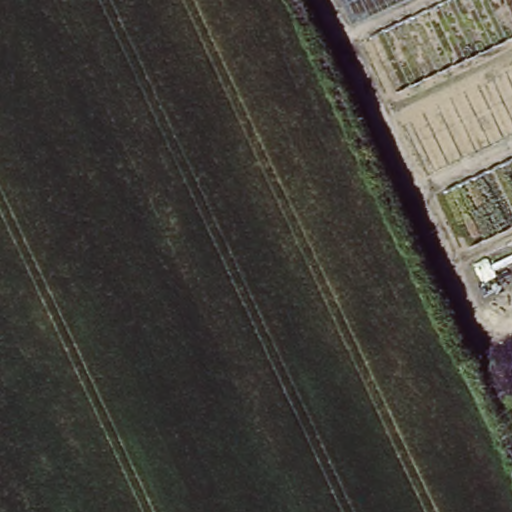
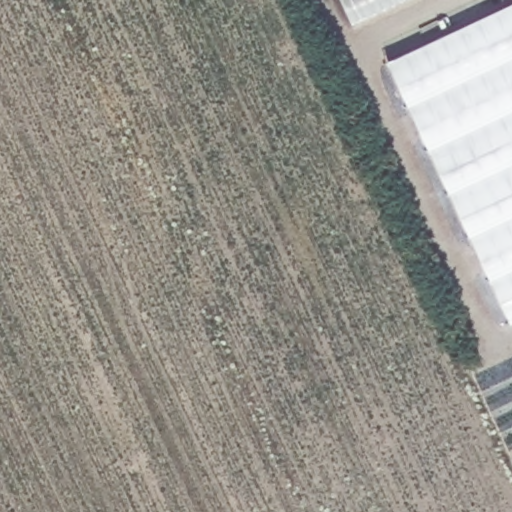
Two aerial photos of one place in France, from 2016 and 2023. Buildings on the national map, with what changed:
demolished [(341,0),(402,0),(352,22),(341,0)]
new [(382,60),(511,0),(512,0),(512,321),(507,323),(382,60)]

